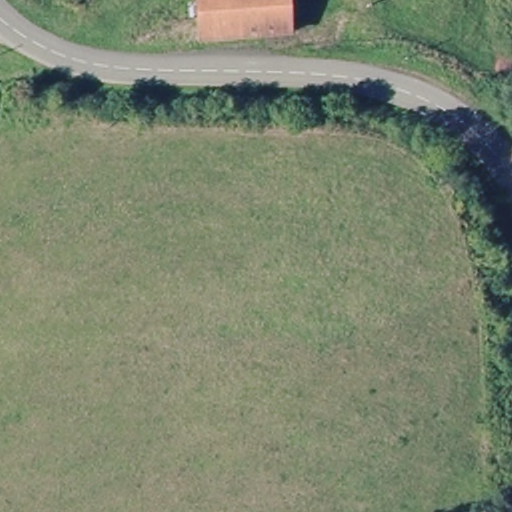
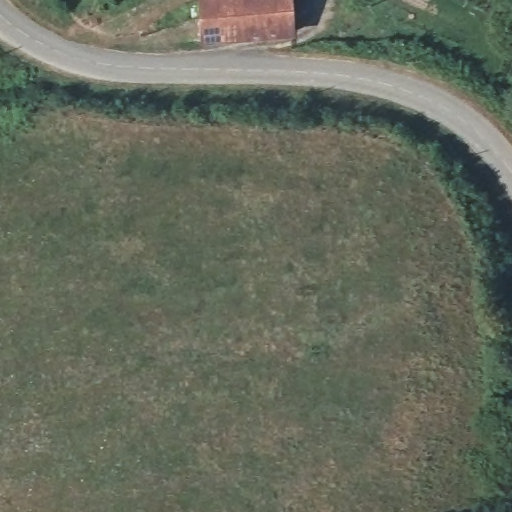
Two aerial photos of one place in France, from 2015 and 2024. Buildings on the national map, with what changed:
unchanged [(203,0),(289,0),(291,32),(240,36),(206,39),(204,8),(203,0)]

